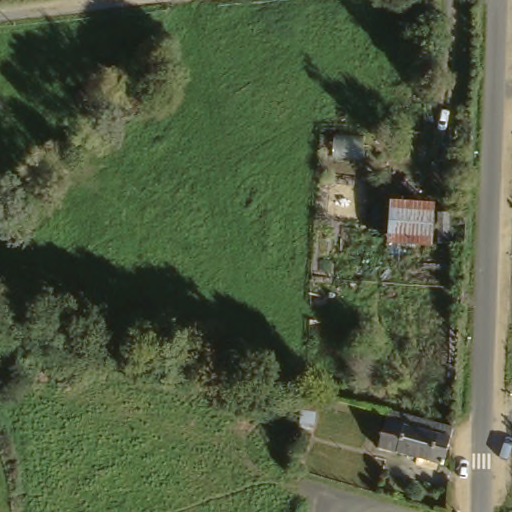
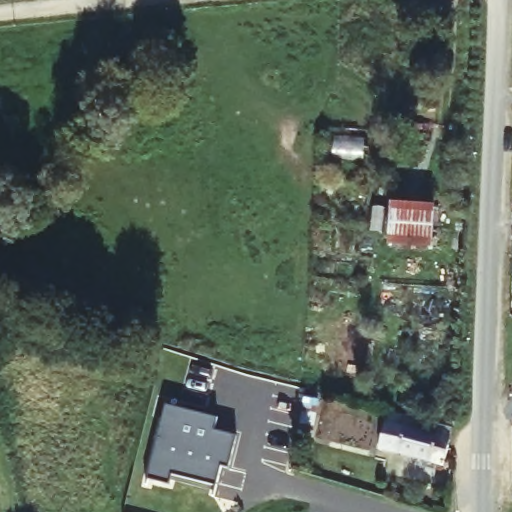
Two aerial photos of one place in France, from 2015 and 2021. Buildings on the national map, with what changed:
unchanged [(395,206),(439,208),(436,246),(392,243),(395,206)]
new [(164,406),(218,421),(215,433),(237,439),(228,471),(220,469),(213,499),(211,498),(213,488),(171,477),(168,487),(147,481),(146,486),(144,486),(164,406)]
unchanged [(449,431),(442,458),(436,456),(434,462),(415,456),(417,451),(378,440),(382,426),(386,413),(449,431)]

